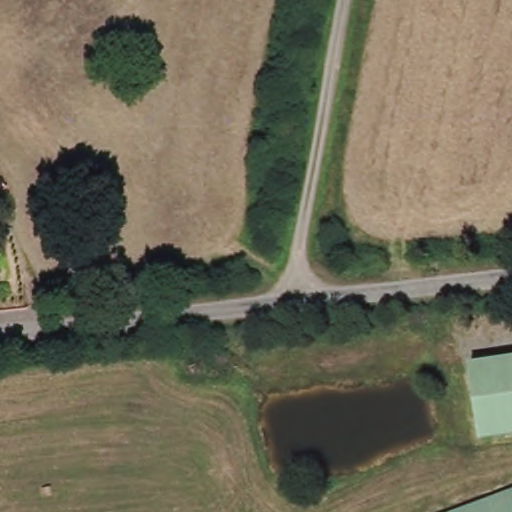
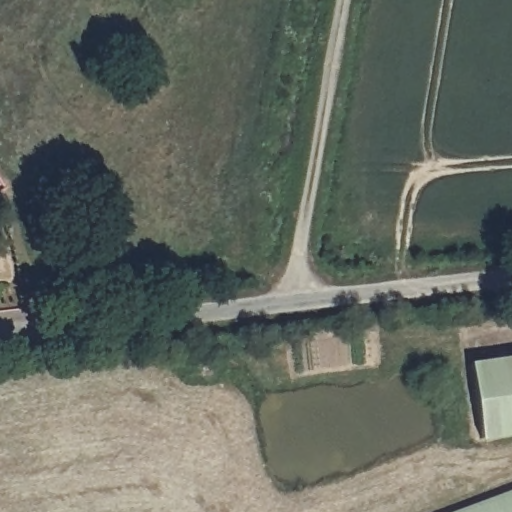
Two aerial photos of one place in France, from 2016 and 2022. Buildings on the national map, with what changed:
unchanged [(512,358),(512,437),(481,442),(473,361),(512,358)]
unchanged [(512,492),(512,512),(457,512),(512,492)]

